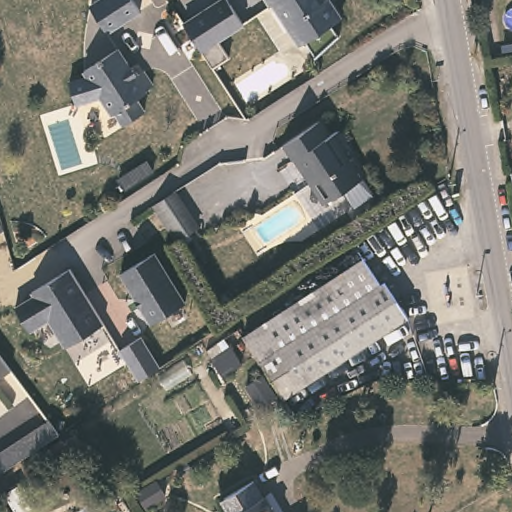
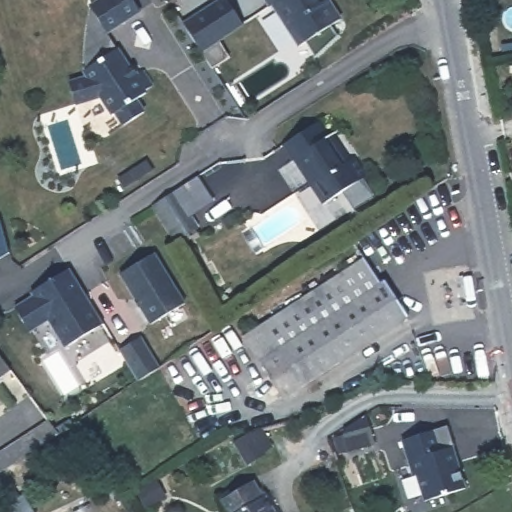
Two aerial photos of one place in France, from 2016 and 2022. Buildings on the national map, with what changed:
unchanged [(139,10),(105,32),(89,7),(100,0),(132,0),(139,10)]
unchanged [(182,22),(220,0),(229,0),(245,28),(222,45),(230,61),(212,71),(182,22)]
unchanged [(267,2),(266,0),(271,0),(267,2)]
unchanged [(321,2),(323,0),(327,0),(337,16),(328,22),(335,32),(314,53),(304,39),(298,42),(272,0),(320,0),(321,2)]
unchanged [(128,68),(130,67),(135,75),(141,71),(150,86),(142,91),(144,93),(134,100),(142,112),(121,126),(114,113),(110,115),(99,97),(74,104),(67,83),(86,77),(82,71),(115,49),(128,68)]
unchanged [(325,132),(327,130),(348,160),(351,157),(363,175),(323,203),(282,141),(315,118),(325,132)]
unchanged [(200,226),(179,240),(155,205),(161,201),(176,191),(200,226)]
new [(8,251),(0,257),(0,225),(8,251)]
unchanged [(159,252),(190,302),(155,323),(124,273),(159,252)]
unchanged [(376,282),(385,276),(411,319),(283,399),(239,330),(360,255),(376,282)]
unchanged [(75,282),(80,289),(102,327),(64,350),(47,323),(28,334),(14,311),(33,299),(30,295),(69,272),(75,282)]
unchanged [(145,334),(164,365),(142,378),(132,362),(124,347),(145,334)]
unchanged [(14,370),(0,379),(0,352),(14,370)]
unchanged [(56,428),(0,465),(0,446),(46,416),(56,428)]
new [(445,426),(465,490),(422,501),(415,475),(410,475),(399,439),(445,426)]
unchanged [(233,508),(223,492),(256,472),(266,488),(268,487),(283,512),(232,512),(230,509),(233,508)]
unchanged [(167,497),(149,509),(139,492),(156,480),(167,497)]

